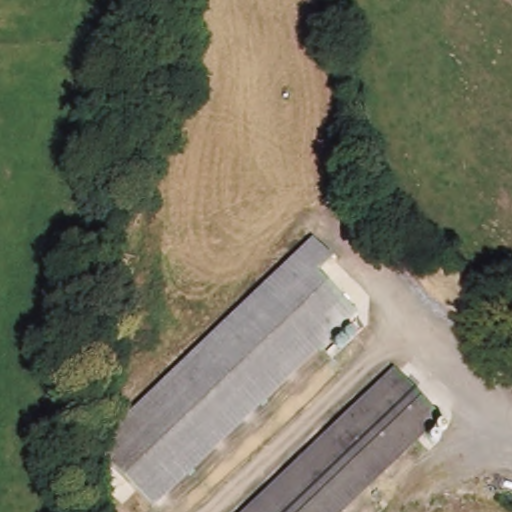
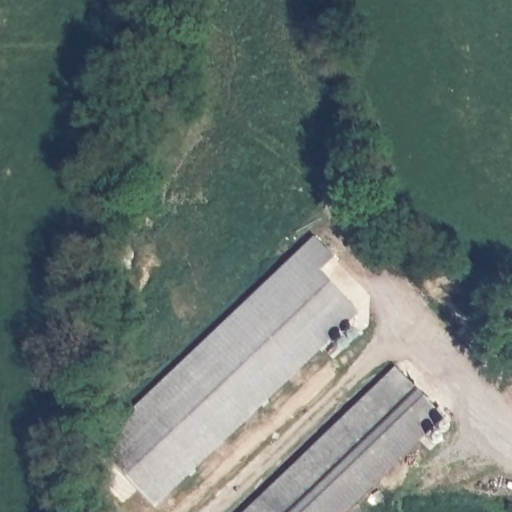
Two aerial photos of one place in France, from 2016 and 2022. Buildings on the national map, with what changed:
unchanged [(333,260),(321,271),(359,312),(349,321),(358,332),(340,349),(330,338),(151,505),(96,441),(312,237),(333,260)]
unchanged [(345,512),(255,512),(404,364),(448,410),(345,512)]

